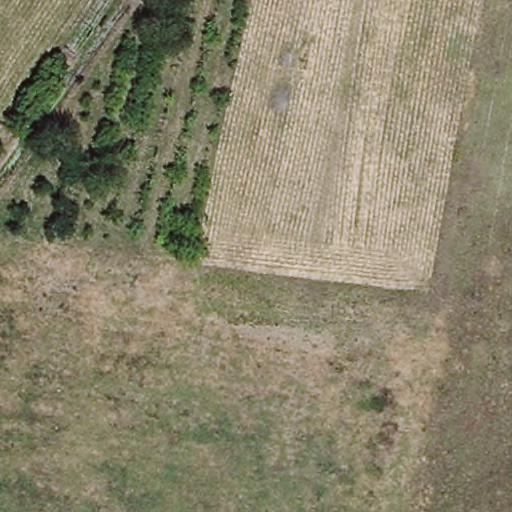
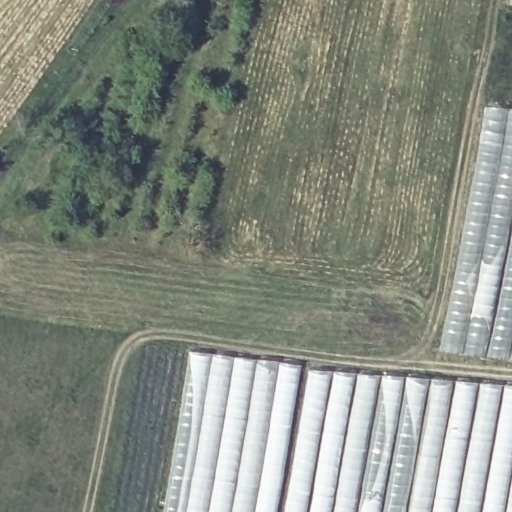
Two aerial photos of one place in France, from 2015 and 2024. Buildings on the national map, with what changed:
new [(484,106),(512,109),(512,216),(484,358),(438,350),(457,261),(484,106)]
new [(512,338),(507,360),(484,358),(512,216),(512,338)]
new [(512,361),(507,360),(512,338),(512,361)]
new [(185,389),(189,352),(269,361),(322,370),(419,376),(512,382),(512,512),(164,512),(167,498),(185,389)]

